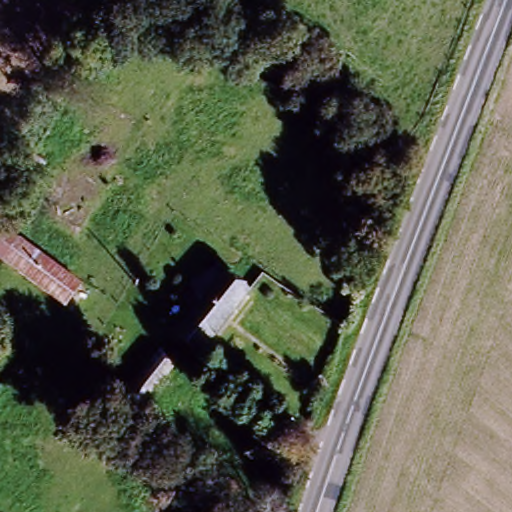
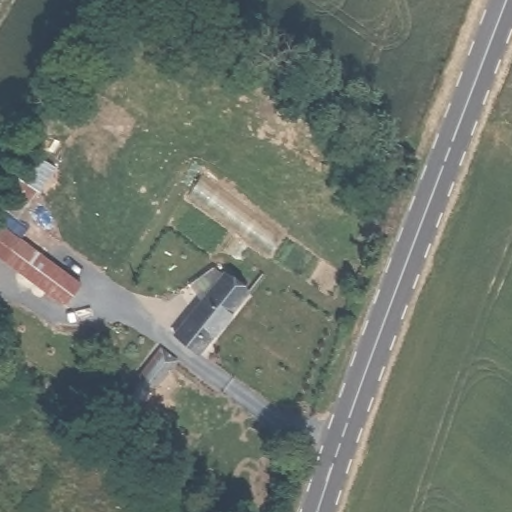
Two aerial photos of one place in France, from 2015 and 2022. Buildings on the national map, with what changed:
unchanged [(32,161),(6,195),(0,191),(0,183),(22,154),(32,161)]
unchanged [(0,266),(0,236),(1,237),(4,233),(24,246),(58,270),(76,282),(60,307),(0,266)]
unchanged [(197,364),(170,347),(197,306),(184,292),(207,271),(216,280),(242,297),(197,364)]
unchanged [(118,410),(131,391),(157,350),(181,365),(152,405),(137,423),(118,410)]

